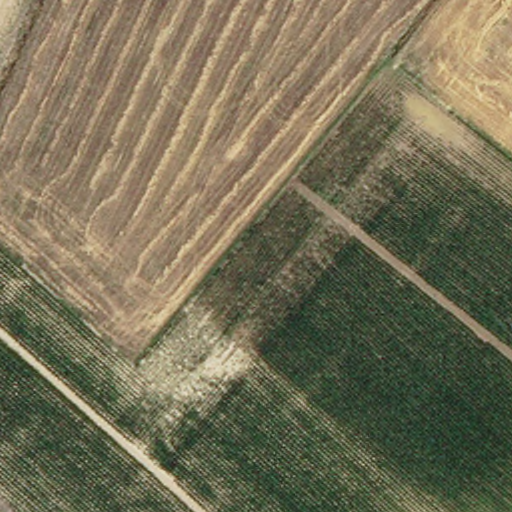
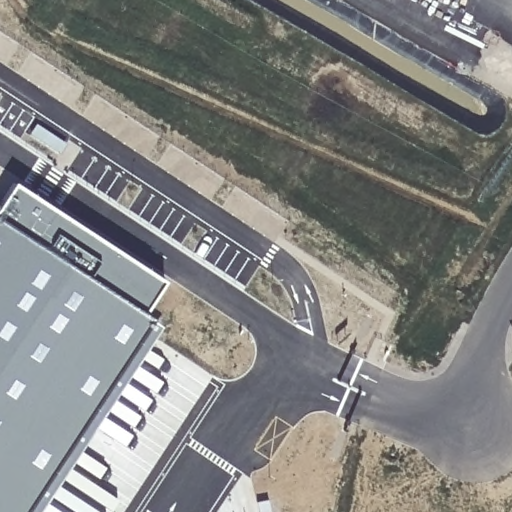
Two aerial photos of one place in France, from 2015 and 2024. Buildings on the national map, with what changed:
new [(163,282),(141,316),(151,321),(25,512),(0,512),(0,204),(14,184),(163,282)]

